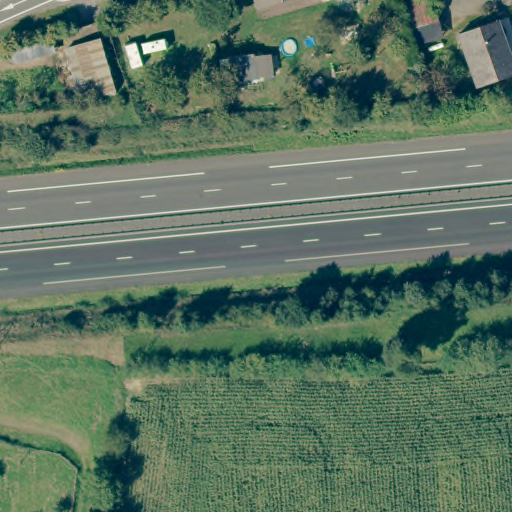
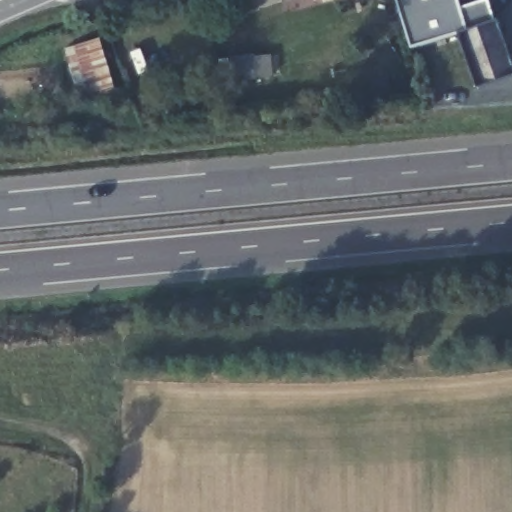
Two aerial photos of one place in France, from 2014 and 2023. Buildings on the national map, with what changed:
unchanged [(261,10),(258,0),(292,0),(261,10)]
new [(460,9),(487,0),(497,24),(461,36),(458,34),(409,48),(394,0),(457,0),(460,9)]
demolished [(442,37),(415,43),(403,1),(410,0),(432,0),(442,37)]
unchanged [(512,63),(512,74),(481,87),(478,86),(461,36),(497,24),(512,63)]
unchanged [(94,44),(110,95),(73,101),(57,51),(94,44)]
unchanged [(268,55),(268,82),(227,85),(225,56),(268,55)]

